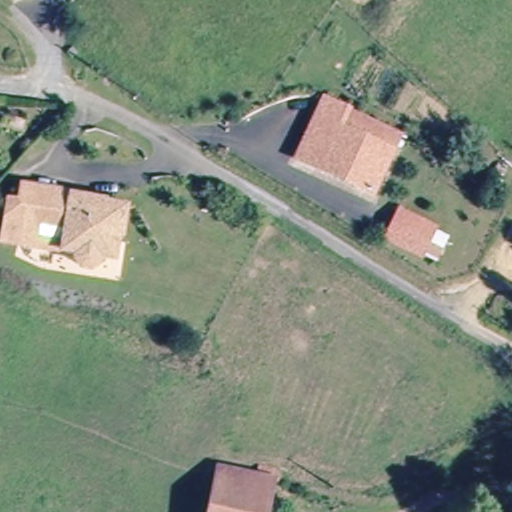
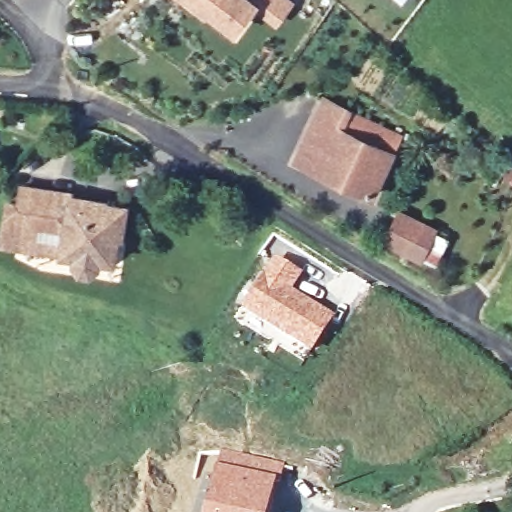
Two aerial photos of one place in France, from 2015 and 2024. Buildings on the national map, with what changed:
new [(277,22),(253,5),(238,31),(209,10),(204,16),(183,0),(292,0),(293,0),(277,22)]
unchanged [(340,125),(391,150),(372,191),(299,157),(326,98),(347,109),(340,125)]
unchanged [(400,132),(391,150),(340,125),(347,109),(400,132)]
unchanged [(60,220),(39,216),(34,246),(2,241),(9,201),(20,203),(23,185),(65,192),(60,220)]
unchanged [(34,246),(39,216),(60,220),(65,192),(72,194),(71,197),(128,207),(124,234),(118,234),(122,212),(70,204),(62,251),(34,246)]
unchanged [(89,270),(80,268),(76,260),(76,255),(62,251),(70,204),(122,212),(118,234),(113,260),(99,258),(98,264),(89,270)]
unchanged [(399,208),(440,227),(423,261),(384,242),(399,208)]
new [(275,255),(303,270),(294,288),(337,315),(314,353),(239,308),(275,255)]
unchanged [(269,478),(263,512),(211,512),(220,467),(269,478)]

